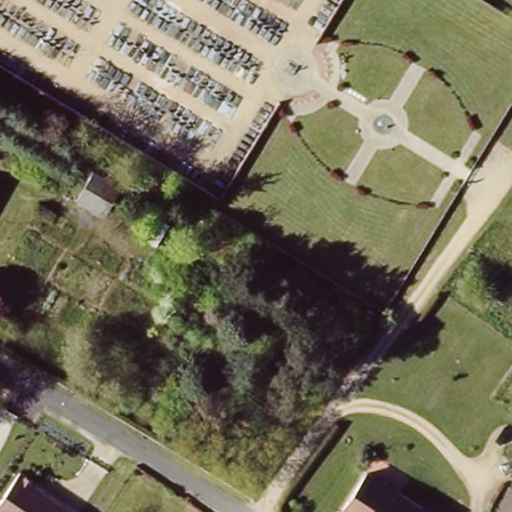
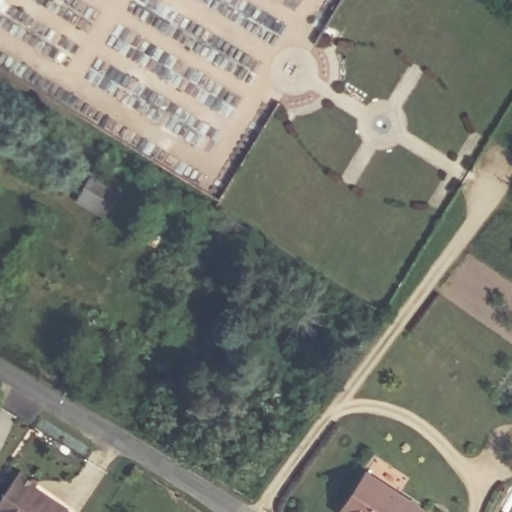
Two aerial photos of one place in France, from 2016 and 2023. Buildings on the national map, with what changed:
unchanged [(120,188),(104,213),(77,196),(93,171),(120,188)]
unchanged [(153,217),(168,226),(156,246),(141,236),(153,217)]
unchanged [(421,502),(414,512),(350,512),(339,504),(366,465),(421,502)]
unchanged [(0,492),(16,472),(74,512),(0,512),(0,492)]

